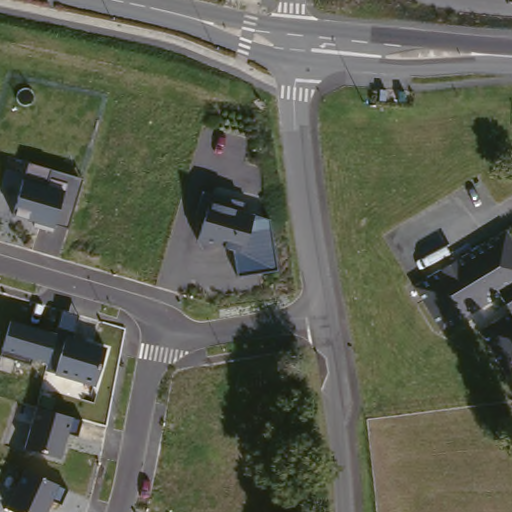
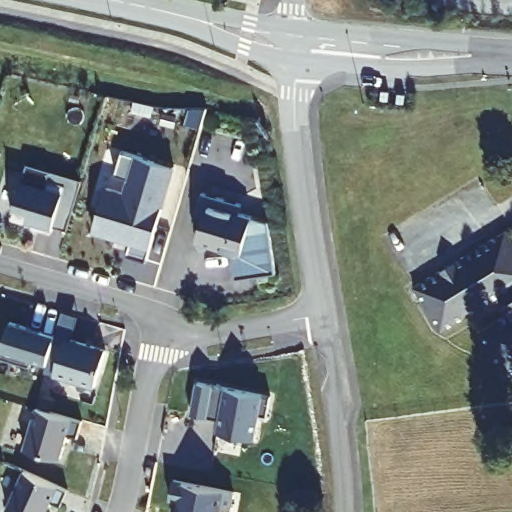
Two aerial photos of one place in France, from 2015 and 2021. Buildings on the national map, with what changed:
new [(93,231),(106,188),(125,193),(129,179),(115,175),(122,151),(156,161),(175,166),(171,181),(147,261),(127,255),(129,249),(115,244),(117,238),(93,231)]
unchanged [(54,224),(53,228),(52,233),(32,227),(34,222),(13,215),(23,180),(29,164),(81,180),(67,229),(54,224)]
unchanged [(233,251),(210,245),(201,250),(198,241),(209,202),(198,200),(200,192),(244,204),(242,211),(253,215),(268,220),(275,270),(238,276),(233,251)]
unchanged [(512,246),(512,371),(509,373),(470,314),(438,334),(410,289),(502,230),(512,246)]
unchanged [(1,355),(2,350),(11,321),(56,335),(63,312),(79,317),(73,338),(106,348),(94,386),(54,375),(54,372),(44,370),(46,363),(31,360),(30,365),(1,355)]
new [(190,414),(196,382),(271,396),(267,416),(259,414),(254,439),(217,432),(220,419),(208,417),(190,414)]
unchanged [(36,405),(73,416),(59,461),(21,449),(36,405)]
unchanged [(21,468),(58,481),(46,512),(3,512),(21,468)]
new [(173,481),(233,492),(230,510),(220,509),(219,512),(177,512),(179,501),(169,499),(173,481)]

